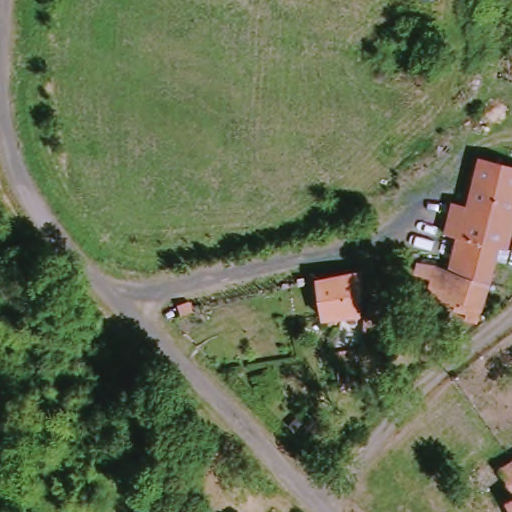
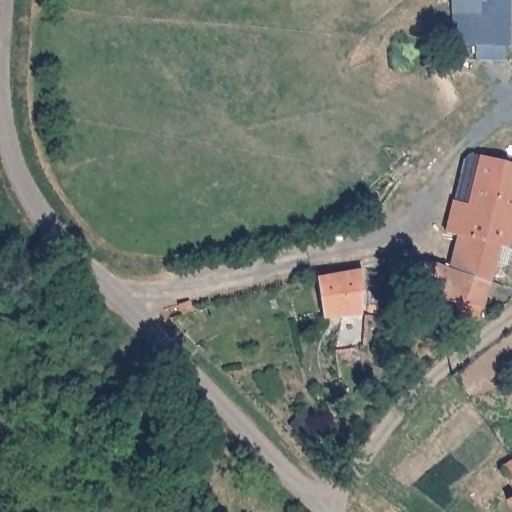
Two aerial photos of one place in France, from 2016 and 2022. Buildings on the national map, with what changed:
new [(452,49),(450,0),(511,0),(510,46),(505,46),(505,60),(475,60),(476,51),(452,49)]
unchanged [(458,236),(454,235),(444,231),(454,202),(467,205),(484,160),(512,170),(512,210),(497,249),(490,247),(479,288),(447,276),(458,236)]
unchanged [(458,322),(460,311),(422,300),(427,285),(415,282),(418,269),(433,270),(447,276),(479,288),(483,290),(476,316),(470,325),(458,322)]
unchanged [(368,314),(321,320),(317,280),(363,273),(368,314)]
unchanged [(510,471),(512,470),(512,475),(510,471)]

